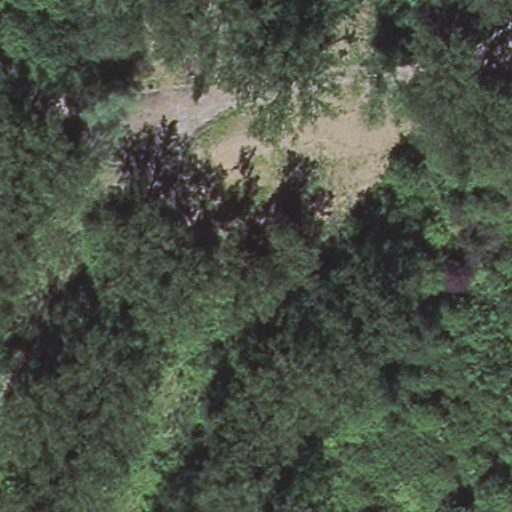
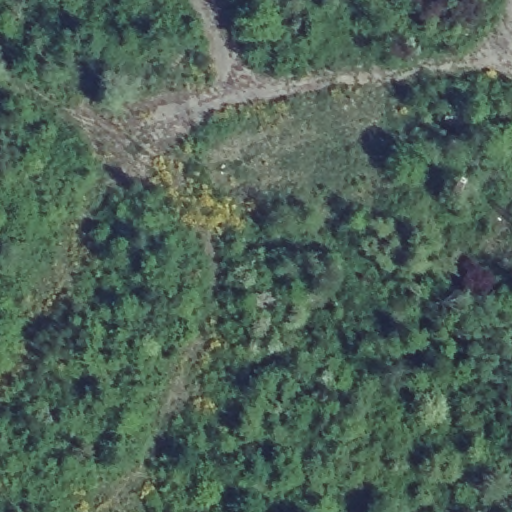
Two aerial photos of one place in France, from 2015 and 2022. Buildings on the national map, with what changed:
unchanged [(86,97),(83,66),(168,48),(171,80),(86,97)]

